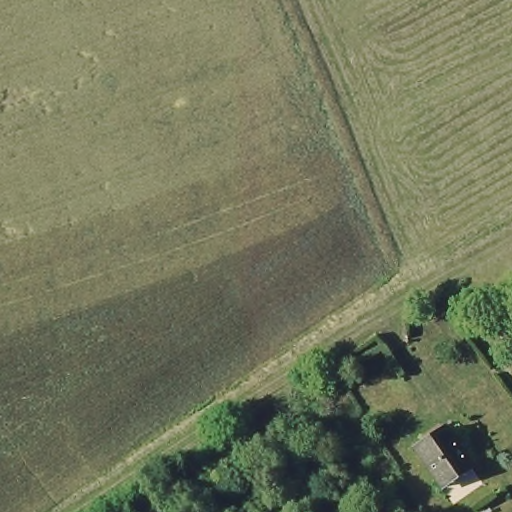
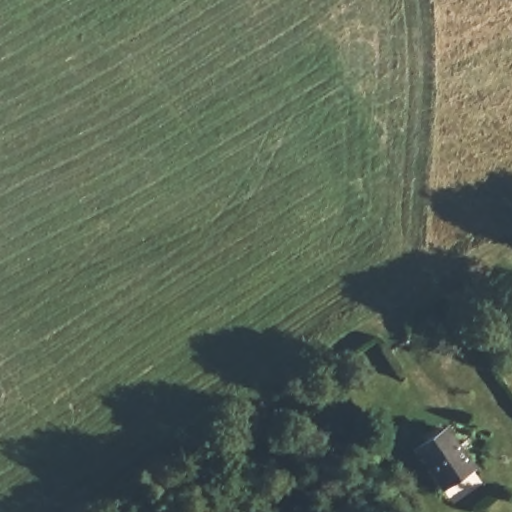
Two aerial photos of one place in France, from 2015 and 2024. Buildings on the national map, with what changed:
unchanged [(439,493),(407,446),(441,422),(473,471),(439,493)]

